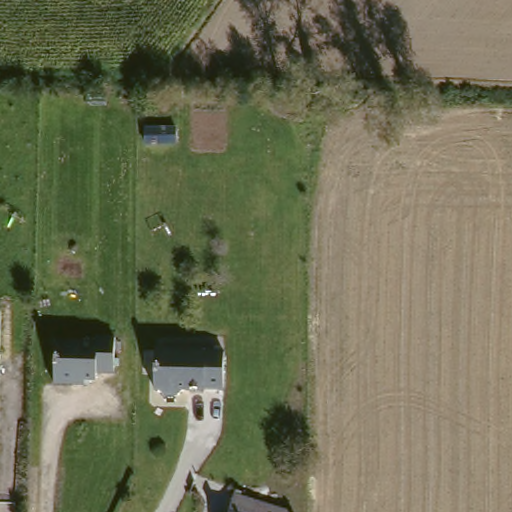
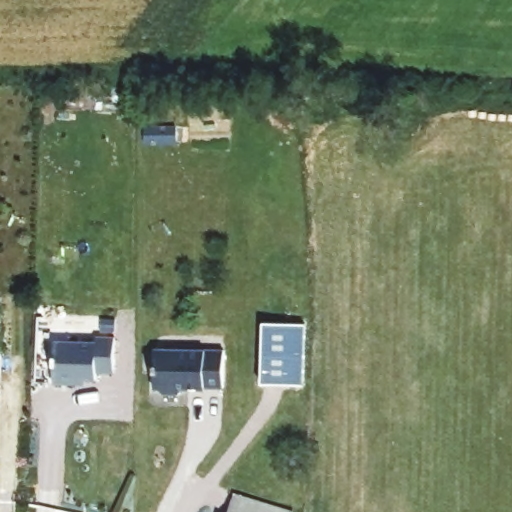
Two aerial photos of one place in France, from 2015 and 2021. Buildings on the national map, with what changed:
new [(263,323),(306,325),(305,385),(262,383),(263,323)]
unchanged [(94,338),(94,332),(112,333),(111,370),(95,369),(95,374),(90,374),(74,375),(72,380),(51,376),(52,337),(94,338)]
unchanged [(221,348),(221,386),(180,385),(180,389),(154,388),(155,347),(221,348)]
unchanged [(289,508),(288,512),(222,512),(229,489),(289,508)]

